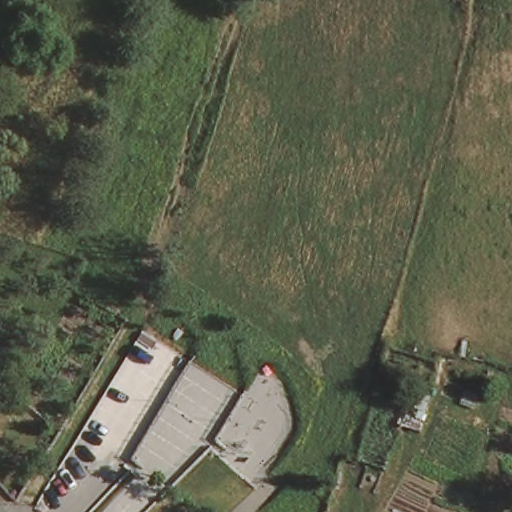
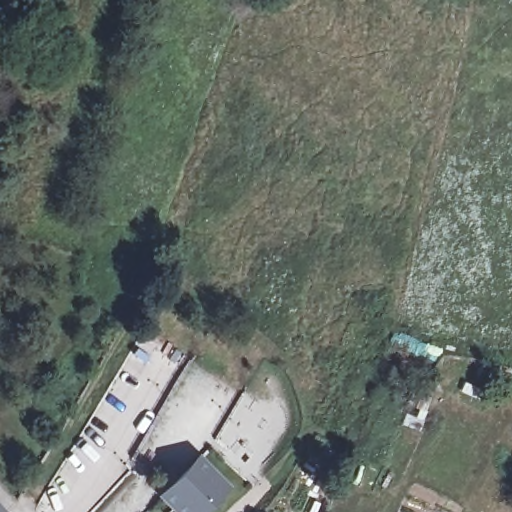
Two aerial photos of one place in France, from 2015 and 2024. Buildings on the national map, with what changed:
new [(232,485),(206,512),(175,512),(157,494),(198,454),(232,485)]

